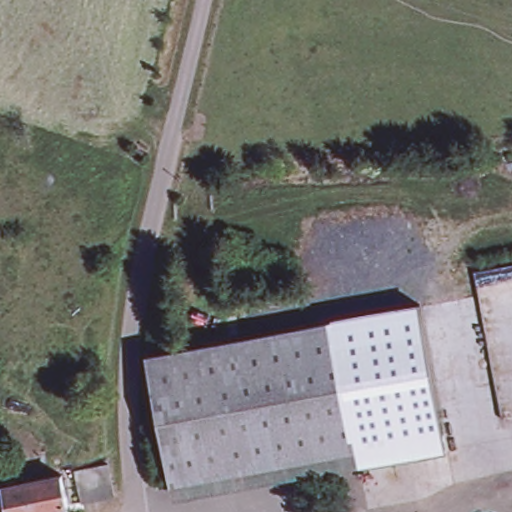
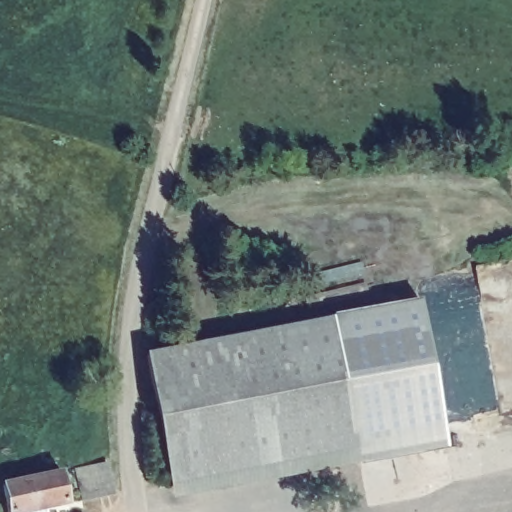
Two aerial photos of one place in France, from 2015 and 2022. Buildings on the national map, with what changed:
unchanged [(443,422),(356,438),(334,315),(420,298),(443,422)]
unchanged [(334,315),(356,438),(171,473),(148,350),(334,315)]
unchanged [(356,438),(359,456),(173,493),(171,473),(356,438)]
unchanged [(108,459),(114,490),(83,498),(77,473),(75,466),(78,466),(108,459)]
unchanged [(61,470),(62,474),(69,473),(71,485),(64,486),(66,500),(43,505),(44,512),(10,512),(3,482),(61,470)]

